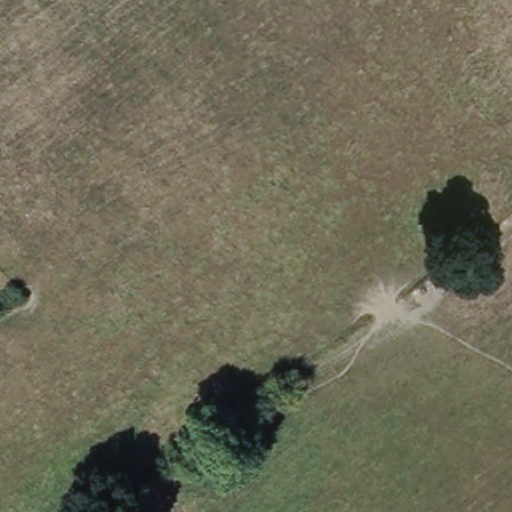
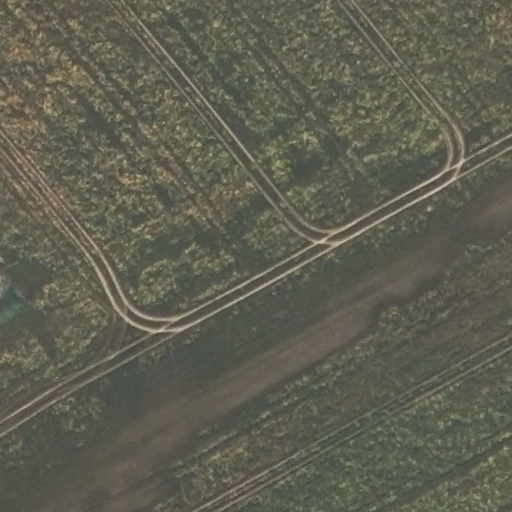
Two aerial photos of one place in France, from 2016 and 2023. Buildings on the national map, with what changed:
[]

